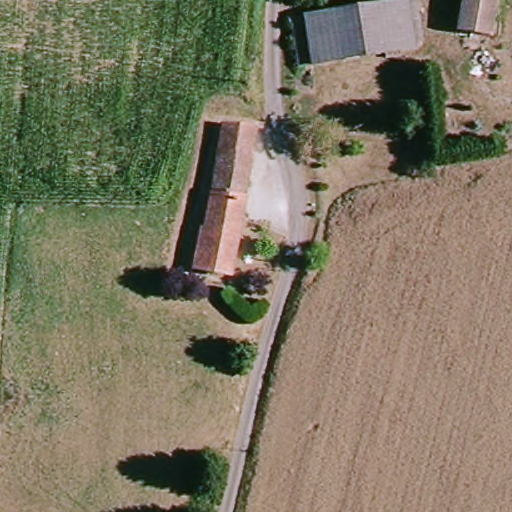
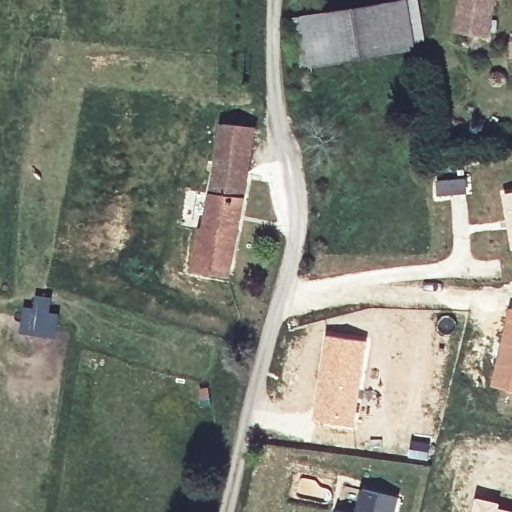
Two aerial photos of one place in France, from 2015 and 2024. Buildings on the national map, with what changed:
unchanged [(460,32),(466,0),(495,0),(490,38),(460,32)]
unchanged [(333,20),(412,4),(420,45),(413,47),(413,56),(342,70),(333,20)]
unchanged [(342,70),(307,77),(300,26),(333,20),(342,70)]
unchanged [(266,148),(254,147),(230,272),(198,265),(205,231),(213,193),(227,127),(269,136),(268,139),(266,148)]
new [(512,249),(510,249),(501,192),(512,190),(512,249)]
new [(512,308),(512,391),(491,386),(509,307),(512,308)]
new [(325,333),(366,341),(355,427),(313,421),(325,333)]
new [(360,488),(400,498),(396,512),(355,512),(360,488)]
new [(501,502),(500,506),(512,508),(512,512),(472,512),(475,496),(501,502)]
new [(335,510),(347,512),(334,512),(335,510)]

